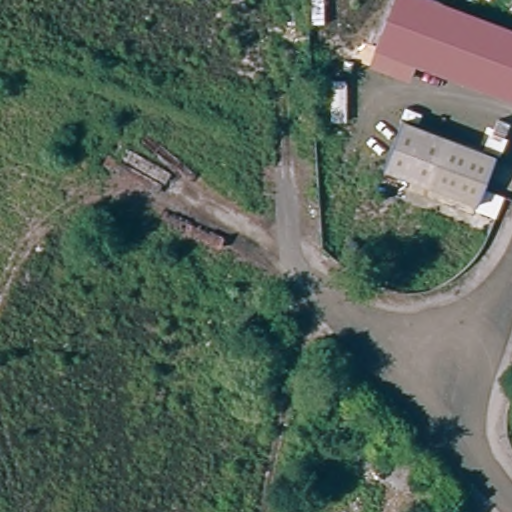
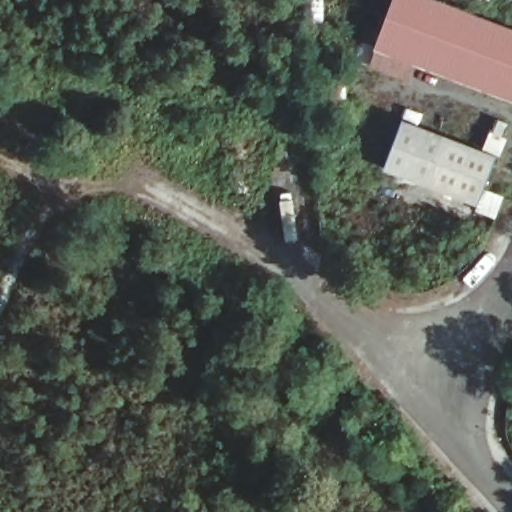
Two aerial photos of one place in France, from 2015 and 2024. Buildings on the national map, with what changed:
unchanged [(374,49),(392,0),(430,0),(512,31),(512,101),(413,64),(406,82),(367,67),(374,49)]
unchanged [(479,210),(386,174),(405,127),(497,162),(479,210)]

